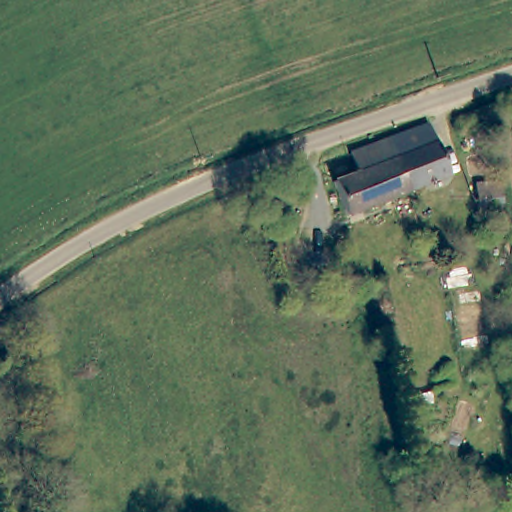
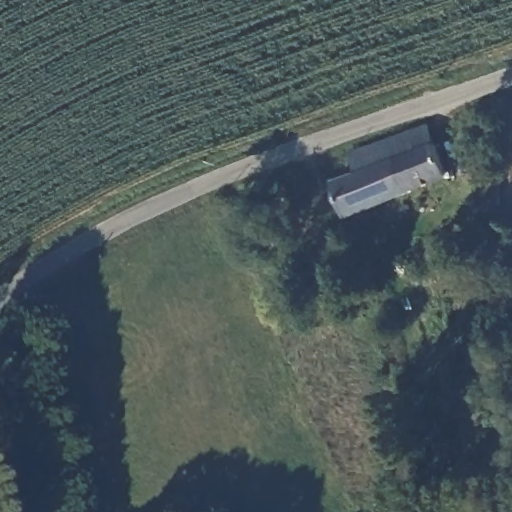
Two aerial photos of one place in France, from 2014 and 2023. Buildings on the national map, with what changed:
unchanged [(356,149),(406,136),(411,154),(438,147),(447,182),(384,201),(376,168),(360,172),(356,149)]
unchanged [(345,212),(337,179),(360,172),(376,168),(384,201),(345,212)]

